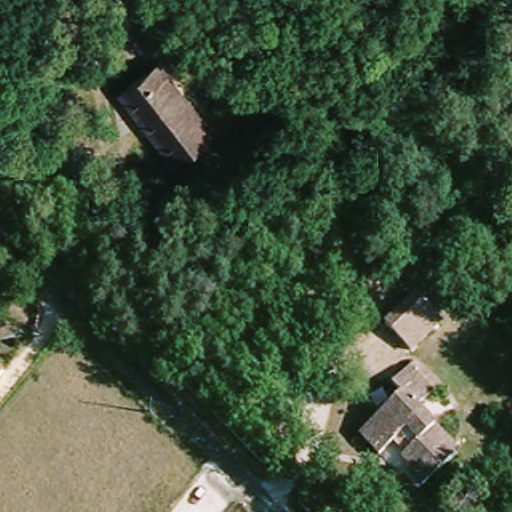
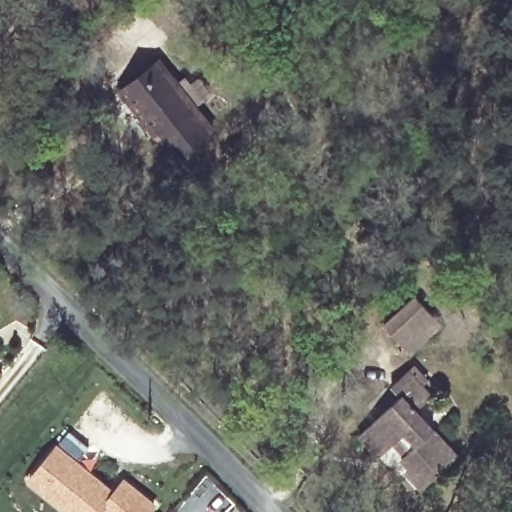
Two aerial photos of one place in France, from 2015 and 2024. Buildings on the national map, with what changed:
unchanged [(215,130),(175,159),(127,90),(165,61),(215,130)]
unchanged [(443,325),(412,355),(383,324),(415,295),(443,325)]
unchanged [(402,440),(383,460),(360,440),(399,393),(392,386),(406,369),(420,382),(426,377),(430,393),(415,412),(462,452),(428,485),(412,472),(415,467),(407,460),(415,450),(402,440)]
new [(114,494),(124,481),(154,506),(149,512),(68,512),(44,492),(30,480),(40,468),(57,447),(114,494)]

